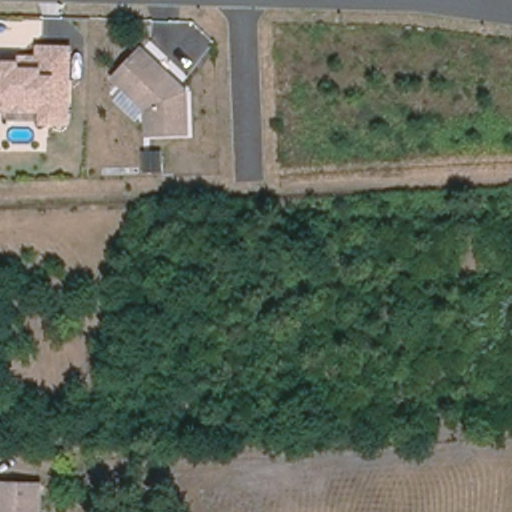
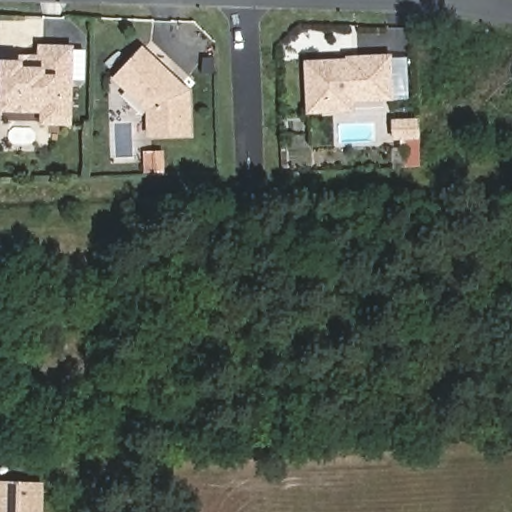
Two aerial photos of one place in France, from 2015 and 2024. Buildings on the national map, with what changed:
unchanged [(74,47),(73,125),(42,126),(42,114),(4,114),(4,54),(39,55),(42,46),(74,47)]
unchanged [(191,91),(193,137),(149,140),(149,111),(116,80),(145,48),(191,91)]
new [(394,101),(353,102),(353,112),(307,114),(304,60),(345,59),(345,56),(392,54),(394,101)]
new [(409,167),(408,138),(397,139),(396,123),(421,122),(422,137),(423,167),(409,167)]
unchanged [(63,438),(46,448),(38,436),(45,432),(55,426),(63,438)]
unchanged [(0,512),(0,484),(42,486),(41,512),(0,512)]

